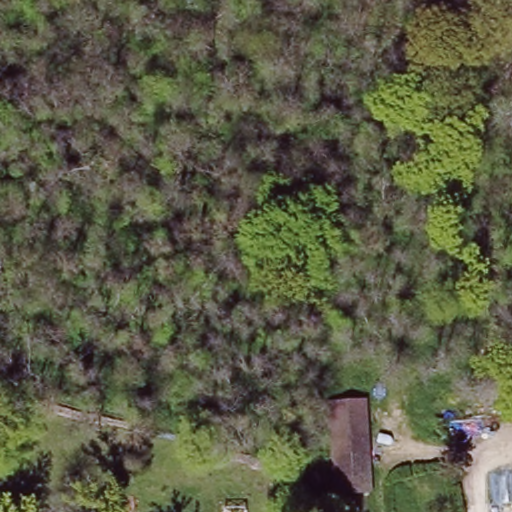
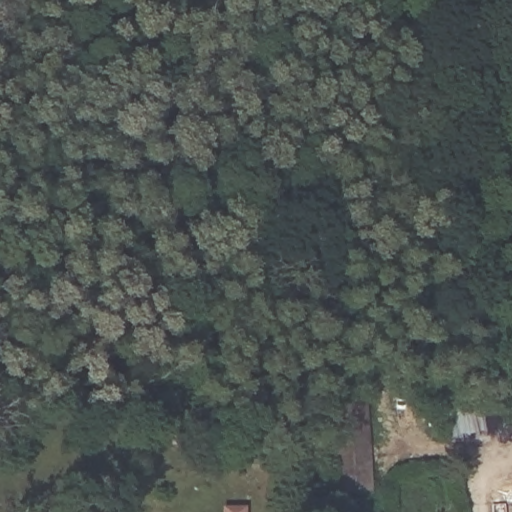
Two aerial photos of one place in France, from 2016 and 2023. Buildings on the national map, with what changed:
unchanged [(375,490),(342,493),(337,454),(335,432),(331,402),(363,398),(367,429),(369,446),(375,490)]

